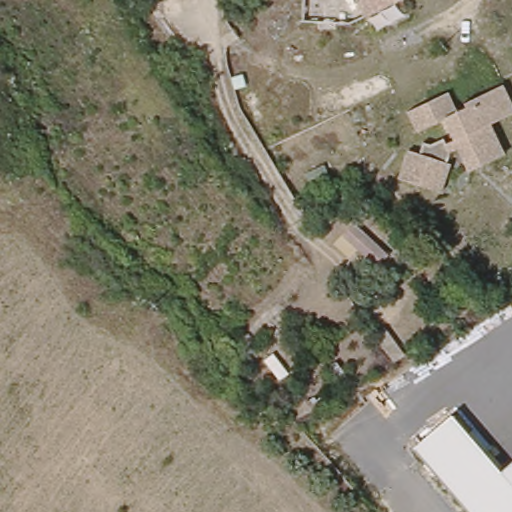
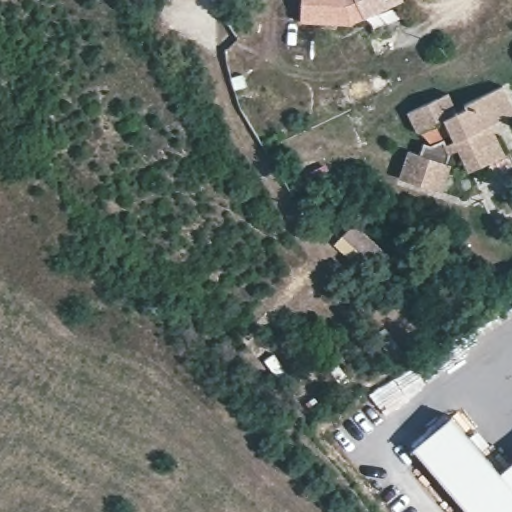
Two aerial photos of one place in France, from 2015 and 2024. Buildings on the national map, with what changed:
new [(363,18),(348,24),(301,22),(302,0),(355,0),(363,16),(363,18)]
unchanged [(355,0),(397,0),(363,16),(355,0)]
unchanged [(466,175),(455,153),(447,156),(444,167),(448,169),(438,196),(396,181),(406,154),(417,158),(421,146),(429,149),(441,143),(444,148),(452,145),(442,124),(414,136),(405,116),(446,96),(454,116),(464,111),(462,107),(501,89),(512,112),(512,116),(488,128),(495,143),(502,158),(466,175)]
unchanged [(388,255),(376,267),(342,235),(353,223),(388,255)]
unchanged [(404,354),(394,361),(383,344),(376,335),(385,328),(404,354)]
unchanged [(499,474),(512,464),(512,512),(466,512),(414,448),(452,417),(499,474)]

